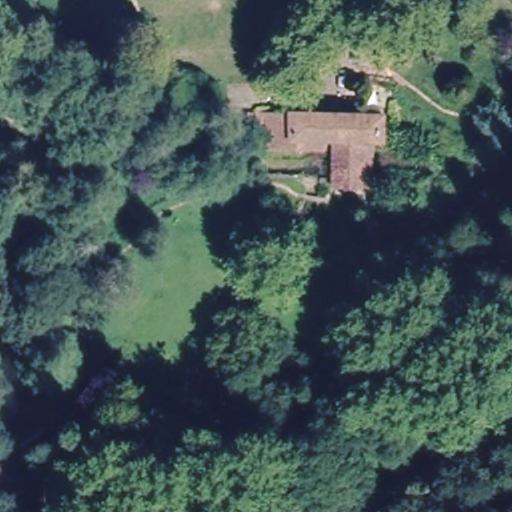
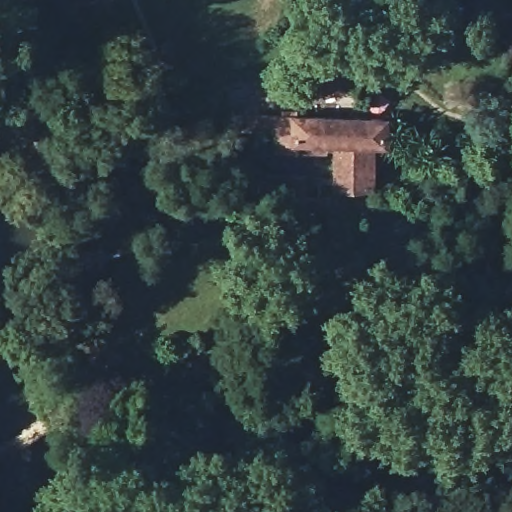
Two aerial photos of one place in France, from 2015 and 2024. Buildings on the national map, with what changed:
unchanged [(387,142),(375,141),(372,187),(338,186),(338,142),(298,141),(298,148),(267,147),(267,123),(254,123),(255,111),(303,113),(388,114),(387,142)]

